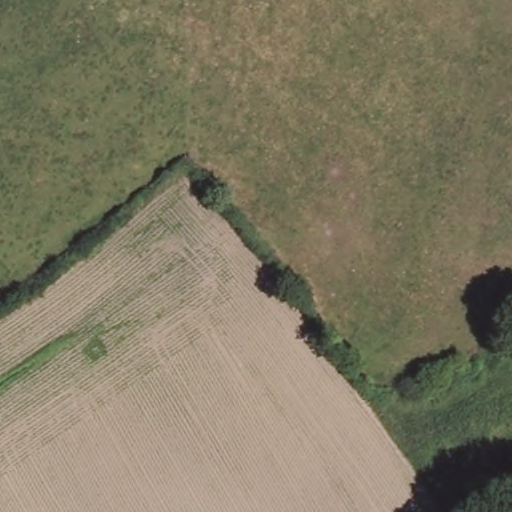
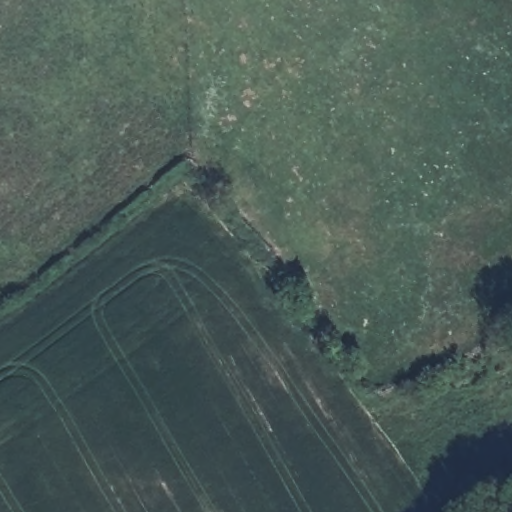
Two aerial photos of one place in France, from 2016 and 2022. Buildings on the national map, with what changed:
[]

